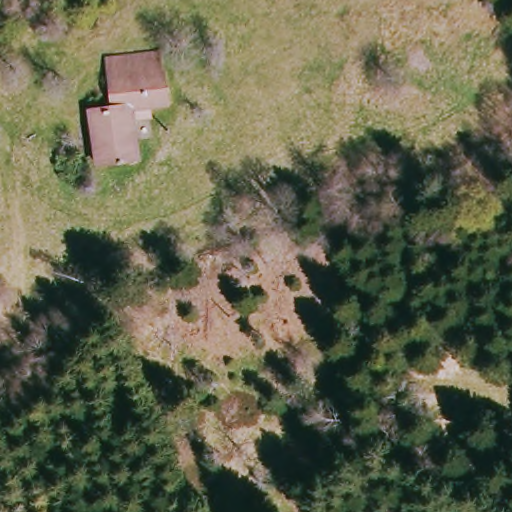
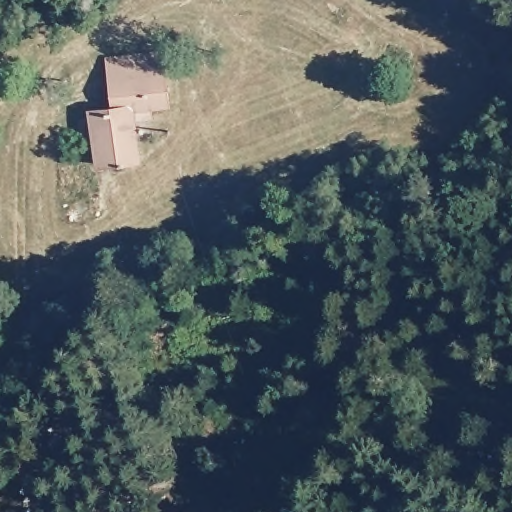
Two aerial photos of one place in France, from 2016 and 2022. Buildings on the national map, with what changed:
unchanged [(102,80),(99,57),(152,51),(154,74),(102,80)]
unchanged [(155,104),(122,110),(129,157),(88,163),(80,109),(105,106),(102,80),(154,74),(155,104)]

